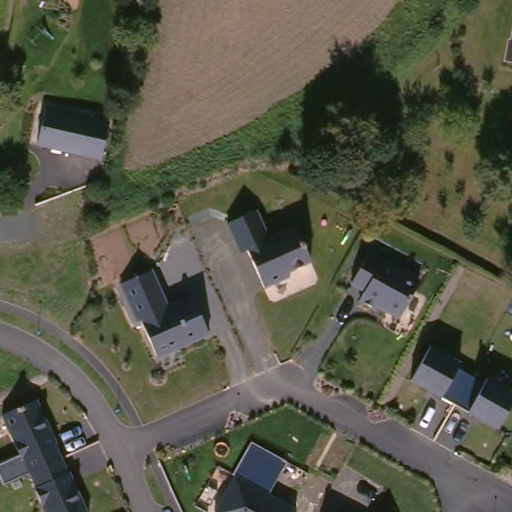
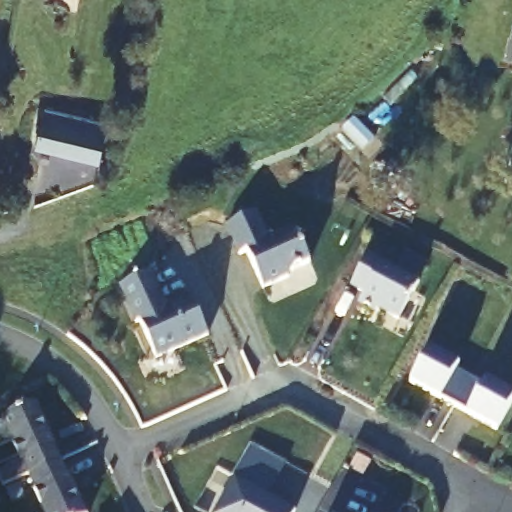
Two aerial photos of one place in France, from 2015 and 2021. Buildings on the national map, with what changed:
unchanged [(106,148),(103,161),(91,159),(39,150),(46,111),(98,121),(110,123),(106,148)]
unchanged [(255,280),(239,242),(232,245),(219,216),(247,203),(261,231),(287,220),(304,257),(255,280)]
unchanged [(365,301),(348,291),(354,282),(340,275),(357,244),(408,272),(388,310),(367,297),(365,301)]
unchanged [(132,313),(129,315),(112,277),(142,263),(159,300),(182,288),(200,326),(149,350),(132,313)]
unchanged [(512,400),(497,430),(410,383),(427,348),(512,392),(512,400)]
unchanged [(84,512),(45,512),(2,416),(37,402),(84,512)]
unchanged [(210,510),(209,505),(229,468),(259,485),(256,491),(257,495),(271,491),(287,500),(280,512),(213,512),(210,510)]
unchanged [(323,505),(337,512),(319,512),(323,505)]
unchanged [(362,505),(374,512),(358,512),(362,505)]

